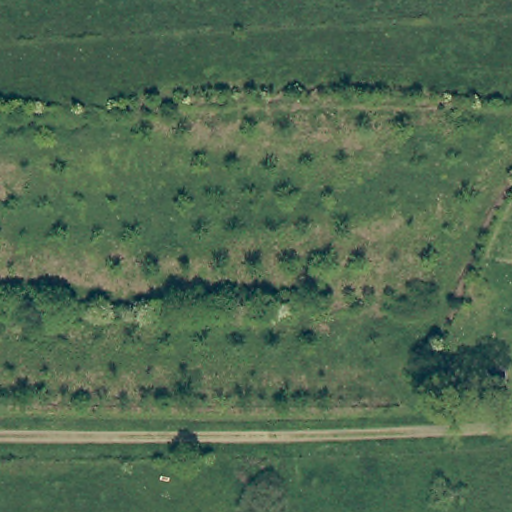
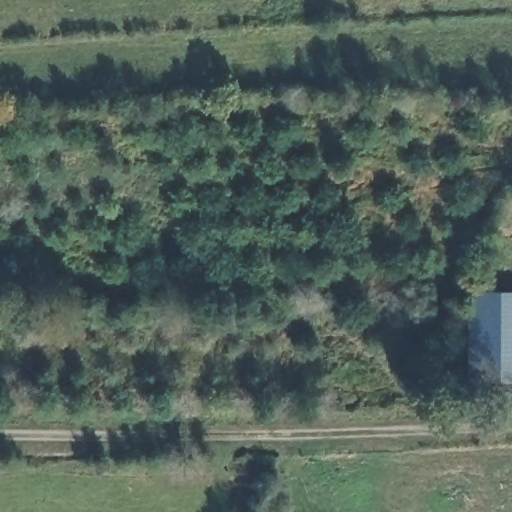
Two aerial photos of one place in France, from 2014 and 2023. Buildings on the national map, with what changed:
new [(466,383),(469,290),(512,292),(512,385),(466,383)]

